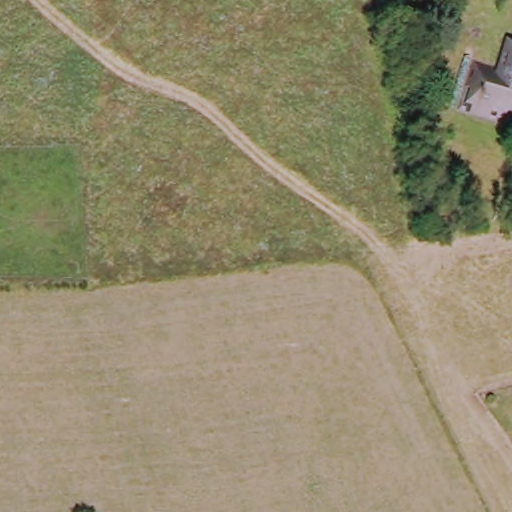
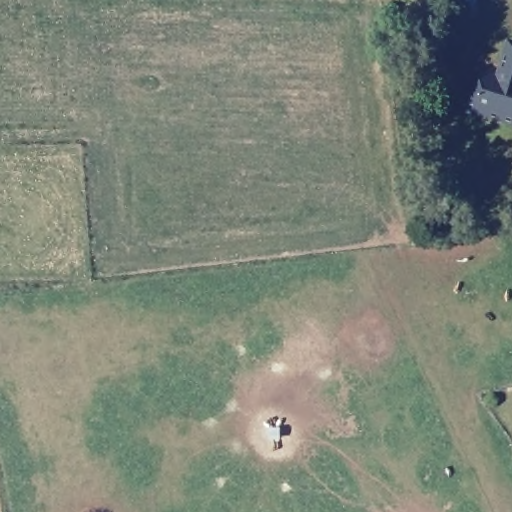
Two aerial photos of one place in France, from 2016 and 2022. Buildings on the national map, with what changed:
unchanged [(465,111),(479,62),(507,68),(512,49),(512,124),(465,111)]

